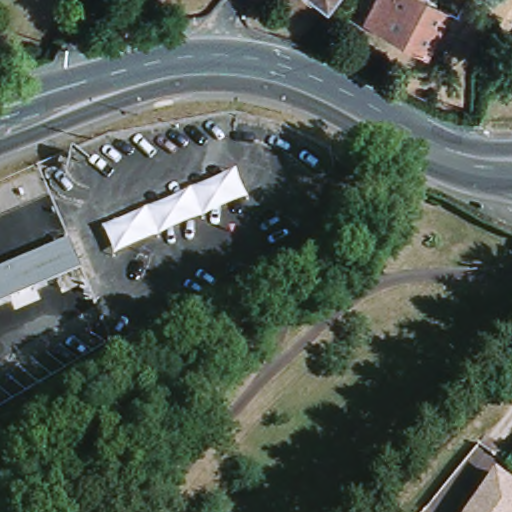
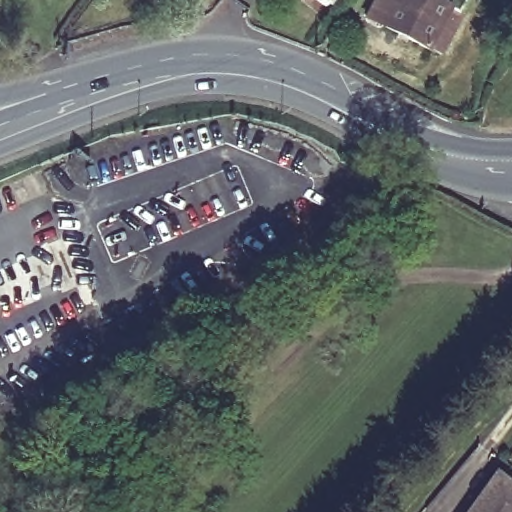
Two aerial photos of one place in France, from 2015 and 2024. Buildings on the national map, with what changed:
unchanged [(326,9),(315,0),(334,0),(326,9)]
unchanged [(443,19),(422,58),(363,27),(378,0),(409,0),(443,19)]
unchanged [(0,218),(0,187),(37,172),(48,197),(0,218)]
new [(65,239),(73,260),(30,279),(7,288),(0,291),(0,267),(22,257),(65,239)]
demolished [(27,269),(35,291),(11,298),(5,277),(27,269)]
unchanged [(495,481),(499,476),(506,481),(512,485),(512,512),(472,512),(480,501),(495,481)]

